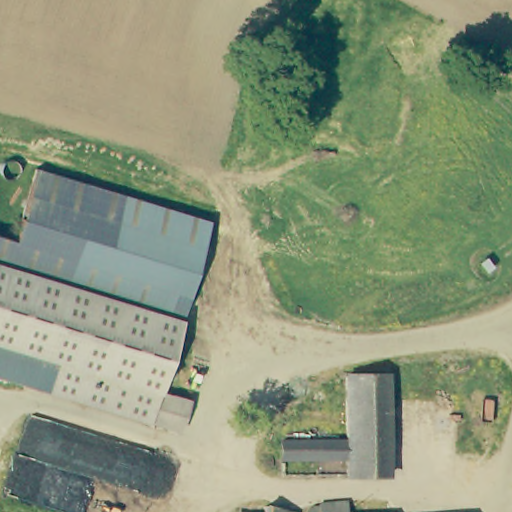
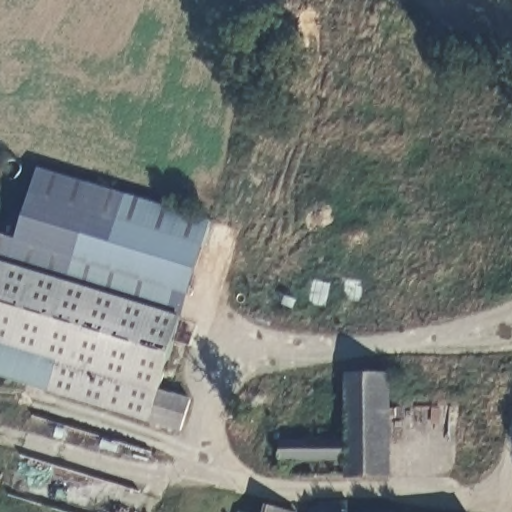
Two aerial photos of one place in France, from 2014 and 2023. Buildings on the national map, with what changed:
unchanged [(0,235),(15,240),(37,169),(210,222),(158,390),(149,421),(0,376),(0,235)]
unchanged [(387,375),(387,476),(347,476),(347,459),(347,439),(347,375),(387,375)]
unchanged [(158,390),(189,400),(179,431),(149,421),(158,390)]
unchanged [(283,459),(283,439),(347,439),(347,459),(283,459)]
unchanged [(347,499),(349,512),(320,512),(320,503),(347,499)]
unchanged [(292,512),(264,512),(266,505),(292,512)]
unchanged [(245,512),(239,512),(240,510),(245,512)]

